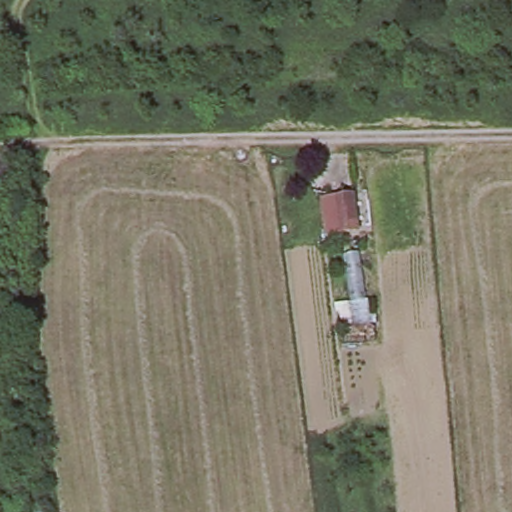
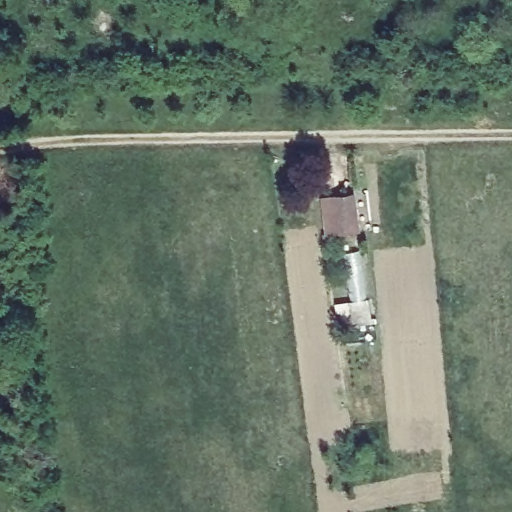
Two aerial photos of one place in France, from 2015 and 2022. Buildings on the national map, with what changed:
unchanged [(339,233),(333,195),(357,193),(362,232),(339,233)]

